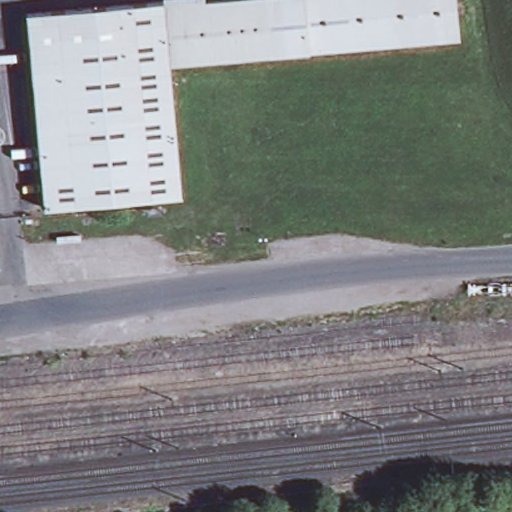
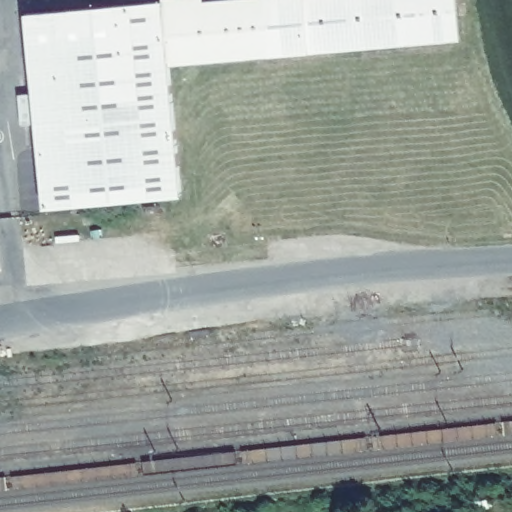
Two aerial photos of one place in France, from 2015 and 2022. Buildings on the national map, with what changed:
unchanged [(221,0),(272,0),(277,57),(170,66),(164,5),(221,0)]
unchanged [(460,41),(277,57),(272,0),(456,0),(460,41)]
unchanged [(164,2),(164,5),(170,66),(182,197),(45,209),(27,14),(164,2)]

